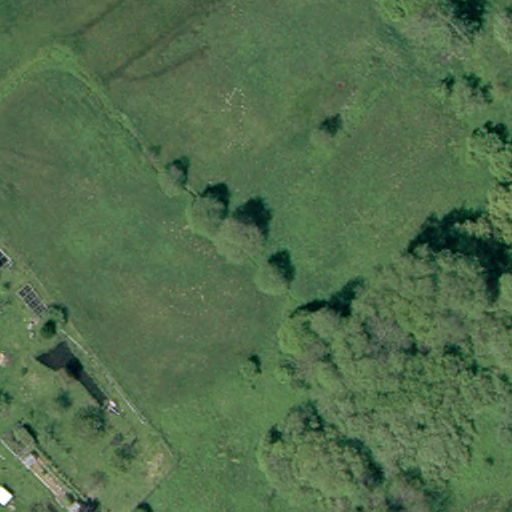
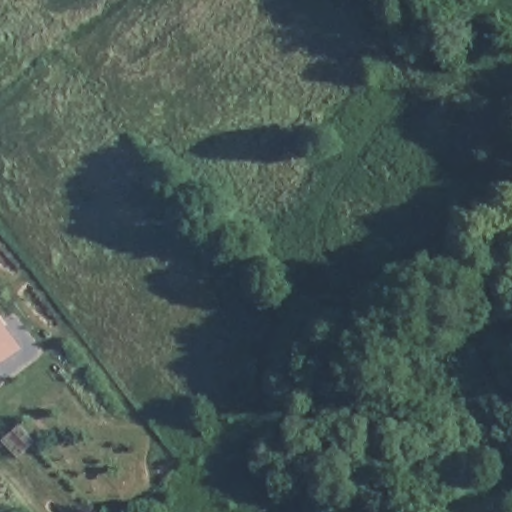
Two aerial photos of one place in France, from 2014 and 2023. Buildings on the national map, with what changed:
new [(0,365),(0,320),(22,349),(0,365)]

